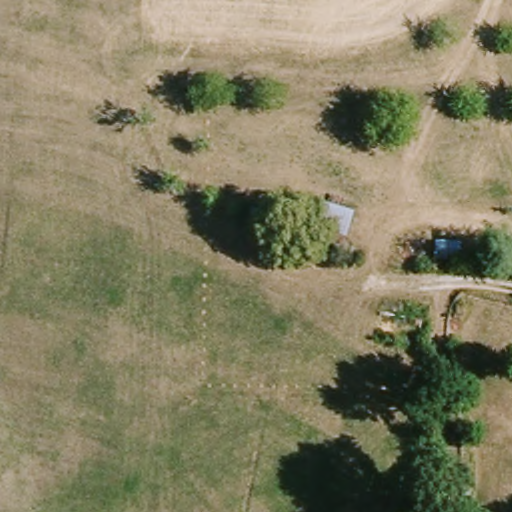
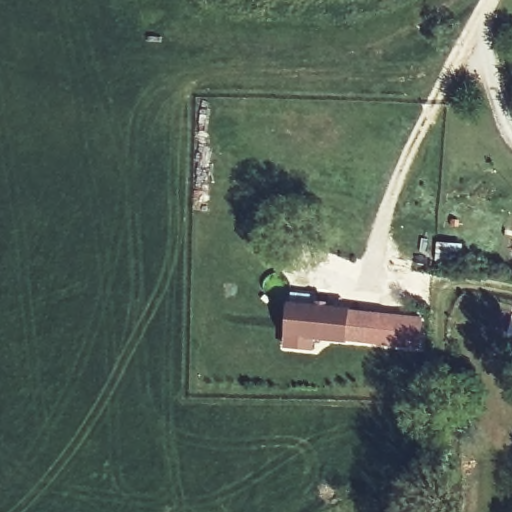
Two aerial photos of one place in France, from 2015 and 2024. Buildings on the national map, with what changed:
demolished [(356,214),(346,244),(309,232),(319,202),(356,214)]
unchanged [(464,244),(462,267),(434,265),(434,242),(464,244)]
new [(293,305),(424,320),(422,348),(316,337),(314,348),(288,346),(293,305)]

